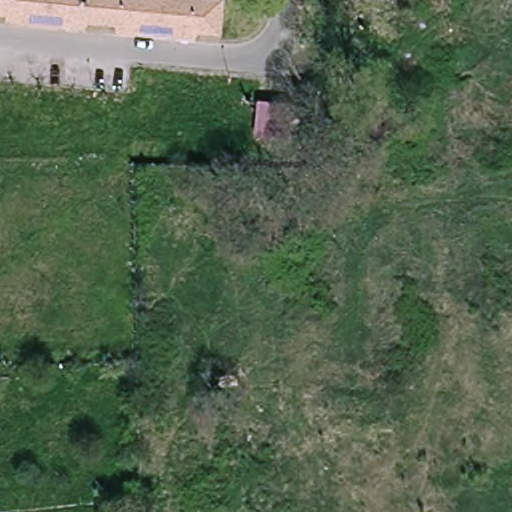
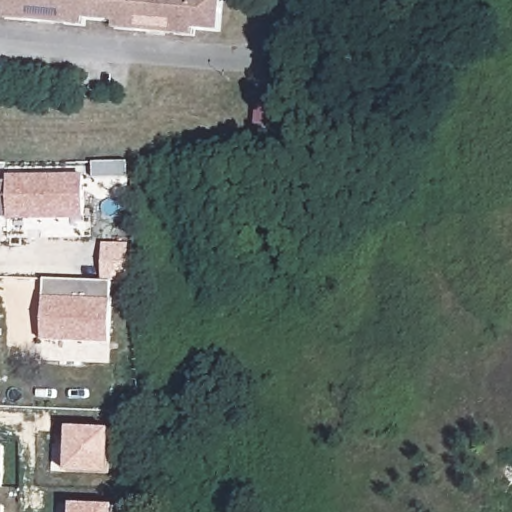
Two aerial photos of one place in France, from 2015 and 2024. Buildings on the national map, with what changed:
unchanged [(8,15),(9,7),(0,6),(0,0),(226,0),(224,27),(201,25),(200,33),(120,25),(121,17),(92,15),(92,21),(8,15)]
new [(85,219),(8,220),(0,220),(0,181),(8,181),(7,176),(85,174),(85,219)]
new [(45,279),(113,282),(112,299),(111,345),(42,342),(45,297),(45,279)]
new [(111,430),(110,474),(66,472),(68,427),(111,430)]
new [(3,487),(0,487),(0,445),(4,446),(3,487)]
new [(114,505),(114,512),(71,512),(71,504),(114,505)]
new [(4,512),(0,512),(0,506),(5,507),(4,512)]

